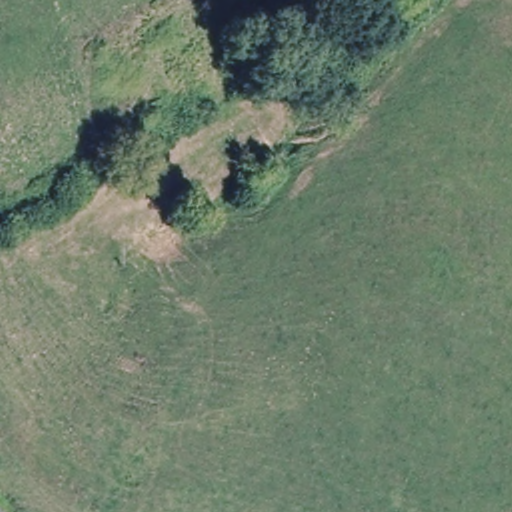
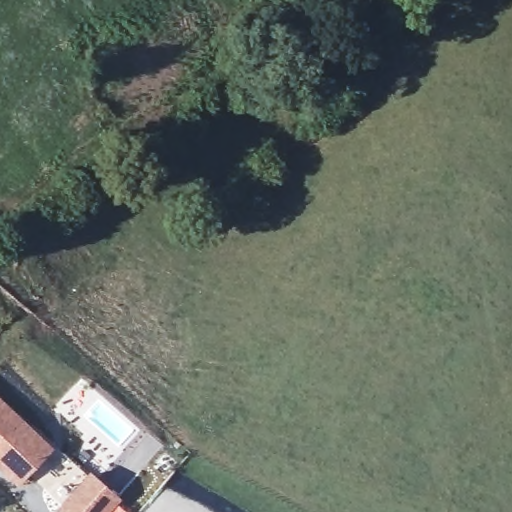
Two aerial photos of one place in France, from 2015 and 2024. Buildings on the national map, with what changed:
new [(17,486),(0,469),(0,397),(54,448),(17,486)]
new [(90,471),(121,498),(118,503),(129,512),(58,512),(56,510),(90,471)]

